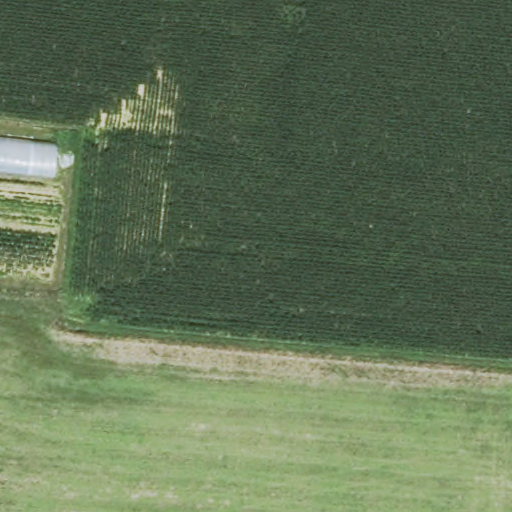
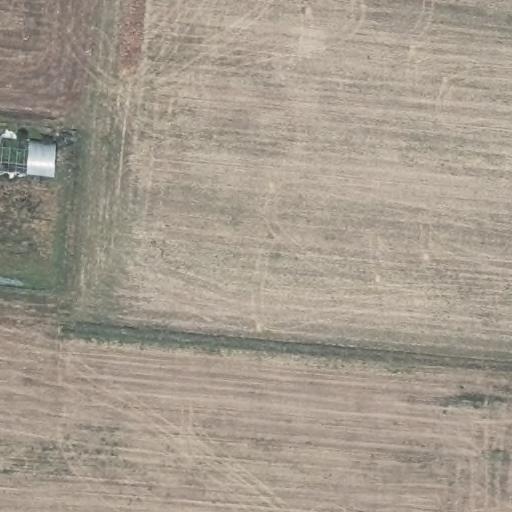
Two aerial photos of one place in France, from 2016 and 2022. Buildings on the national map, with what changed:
[]

